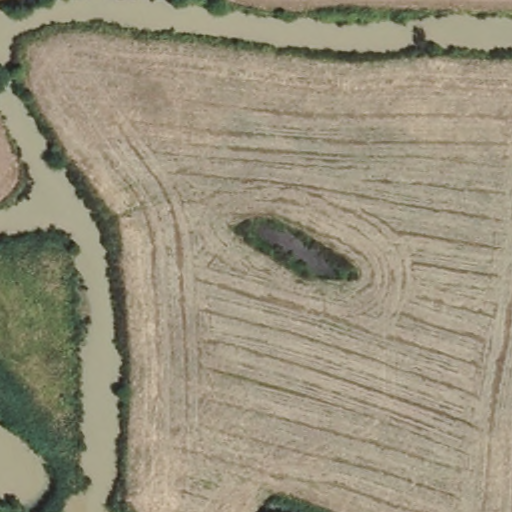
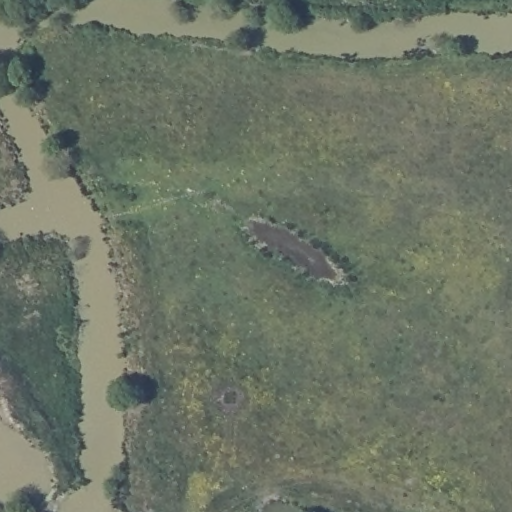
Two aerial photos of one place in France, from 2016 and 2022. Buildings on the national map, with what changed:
[]

